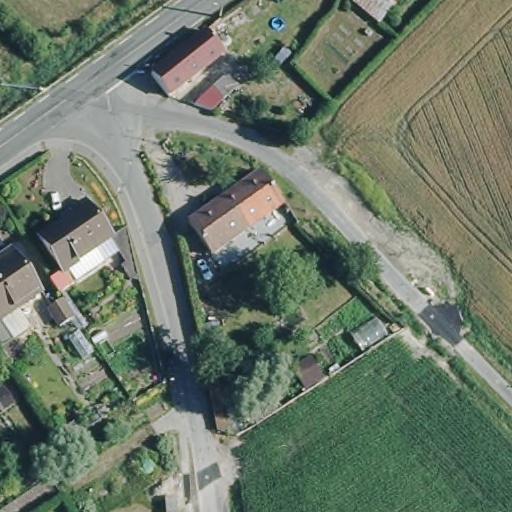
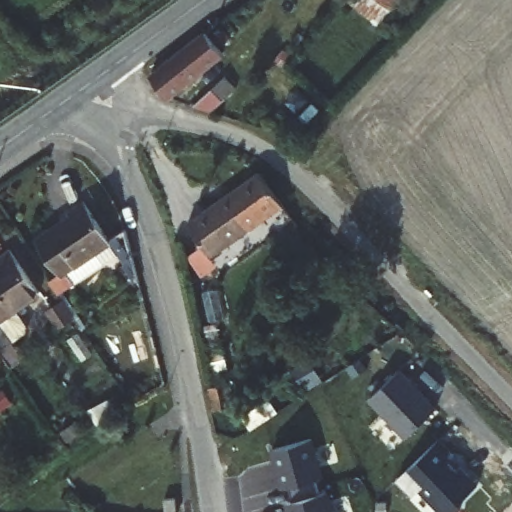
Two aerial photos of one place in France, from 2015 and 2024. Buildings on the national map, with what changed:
unchanged [(342,4),(345,0),(402,0),(375,32),(342,4)]
unchanged [(149,72),(223,20),(250,58),(230,71),(220,56),(166,95),(149,72)]
unchanged [(200,94),(210,89),(220,106),(210,111),(200,94)]
unchanged [(207,256),(185,224),(202,210),(207,215),(242,189),(238,184),(256,171),(280,202),(207,256)]
unchanged [(75,283),(57,295),(48,282),(62,272),(39,237),(72,215),(69,208),(83,201),(109,243),(96,252),(104,264),(75,283)]
unchanged [(40,282),(15,298),(26,314),(25,321),(10,330),(20,346),(9,354),(0,341),(0,242),(11,236),(40,282)]
unchanged [(124,266),(109,243),(121,236),(131,281),(129,284),(119,270),(124,266)]
new [(370,398),(401,368),(439,406),(407,437),(370,398)]
new [(287,503),(295,500),(290,485),(282,487),(272,448),(312,436),(324,477),(315,480),(320,492),(326,490),(332,512),(290,512),(287,503)]
new [(426,484),(409,467),(441,437),(453,449),(449,452),(480,482),(460,501),(464,504),(455,512),(445,512),(421,488),(426,484)]
demolished [(187,507),(176,508),(174,489),(185,488),(187,507)]
new [(175,512),(164,512),(164,498),(175,498),(175,512)]

